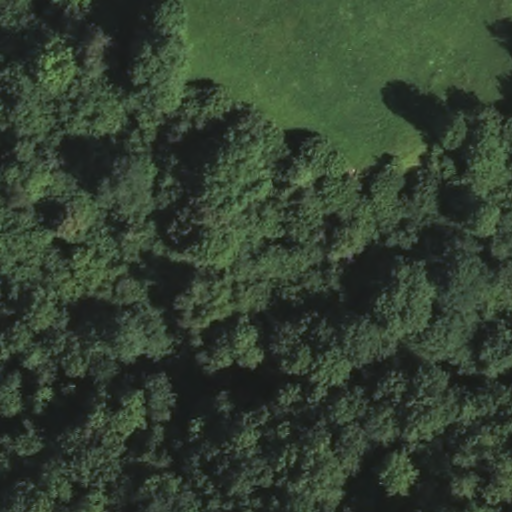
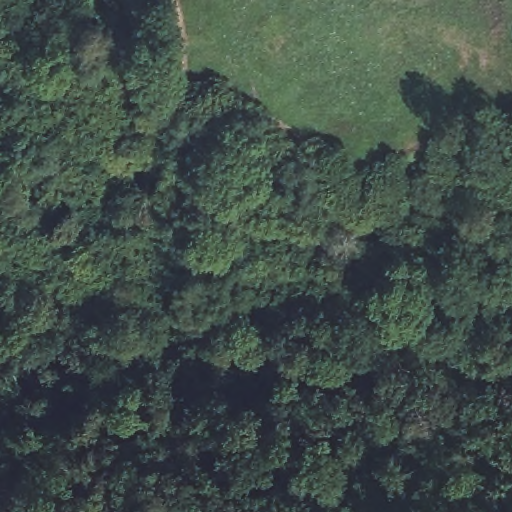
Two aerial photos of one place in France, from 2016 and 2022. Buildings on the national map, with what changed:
[]

